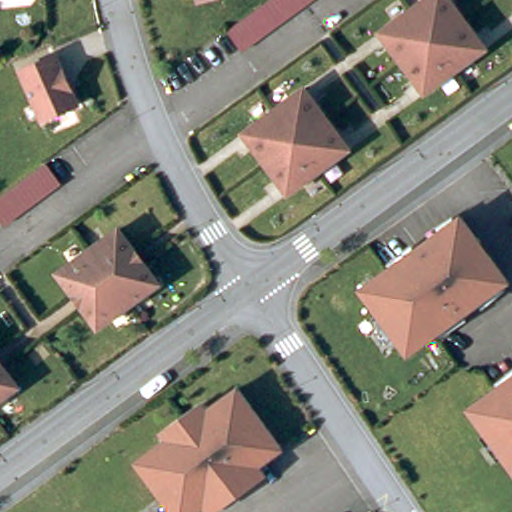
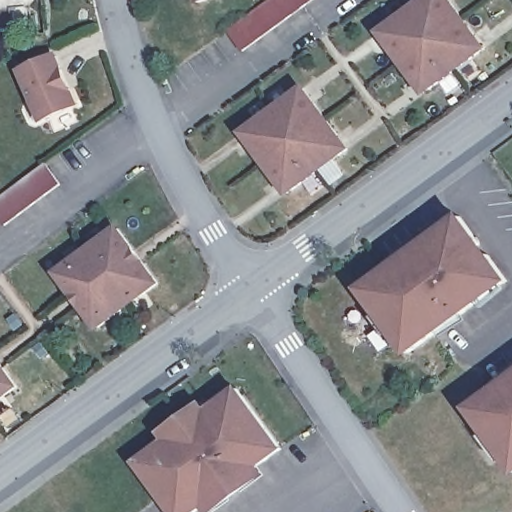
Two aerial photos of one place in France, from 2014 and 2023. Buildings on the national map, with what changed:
unchanged [(193,2),(193,0),(200,0),(193,2)]
unchanged [(237,50),(221,29),(261,0),(306,0),(237,50)]
unchanged [(412,78),(388,46),(378,32),(382,30),(423,0),(448,0),(450,2),(473,35),(483,49),(480,51),(426,90),(422,92),(412,78)]
unchanged [(70,85),(77,101),(42,117),(21,67),(56,52),(63,69),(70,85)]
unchanged [(251,145),(241,132),(245,129),(298,90),(302,88),(312,101),(336,134),(347,149),(343,150),(290,190),(285,192),(275,179),(251,145)]
unchanged [(54,187),(0,226),(0,195),(39,166),(54,187)]
unchanged [(406,352),(359,289),(459,216),(478,244),(486,254),(506,281),(406,352)]
unchanged [(56,271),(117,227),(134,250),(140,260),(157,282),(96,325),(80,303),(73,294),(56,271)]
unchanged [(15,385),(0,396),(0,363),(15,385)]
unchanged [(512,376),(512,471),(466,408),(512,376)]
unchanged [(186,512),(165,512),(128,460),(163,435),(158,428),(174,416),(190,405),(195,412),(230,387),(275,448),(246,468),(250,473),(235,485),(219,495),(204,506),(200,501),(186,512)]

